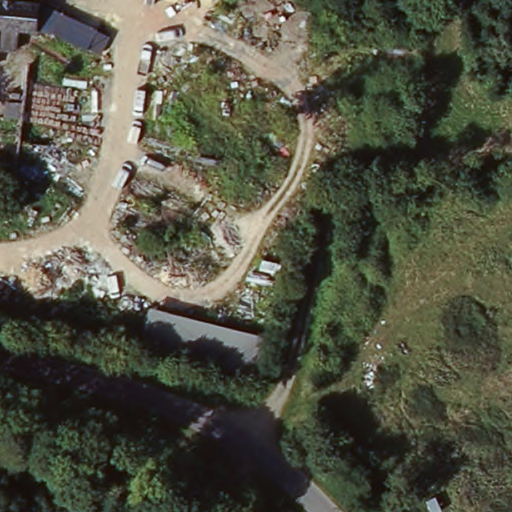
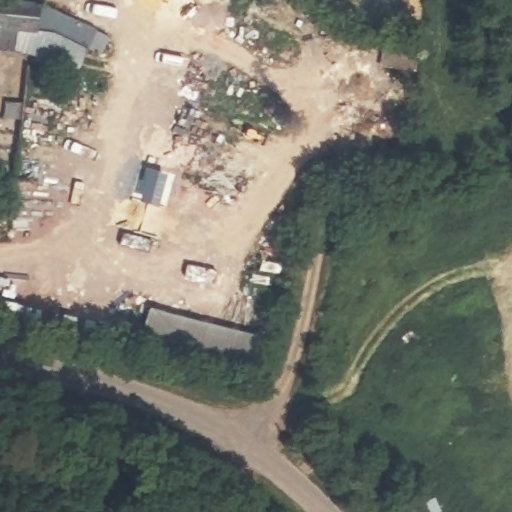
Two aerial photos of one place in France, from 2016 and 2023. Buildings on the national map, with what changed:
unchanged [(111,35),(97,61),(80,52),(75,68),(29,57),(0,55),(0,0),(46,0),(111,35)]
unchanged [(143,309),(264,340),(252,385),(132,354),(143,309)]

